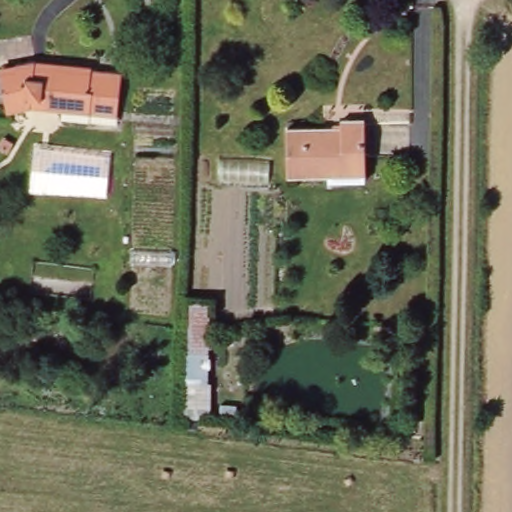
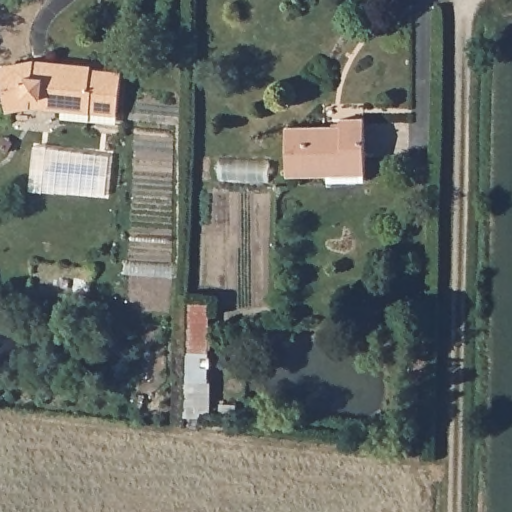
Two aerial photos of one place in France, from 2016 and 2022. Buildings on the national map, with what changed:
unchanged [(64,116),(65,110),(34,105),(11,109),(4,68),(20,65),(20,62),(40,59),(41,62),(126,75),(120,118),(119,124),(64,116)]
unchanged [(366,156),(366,179),(330,180),(329,173),(291,174),(289,125),(344,124),(344,118),(365,117),(366,156)]
unchanged [(188,303),(213,303),(216,384),(191,391),(188,303)]

